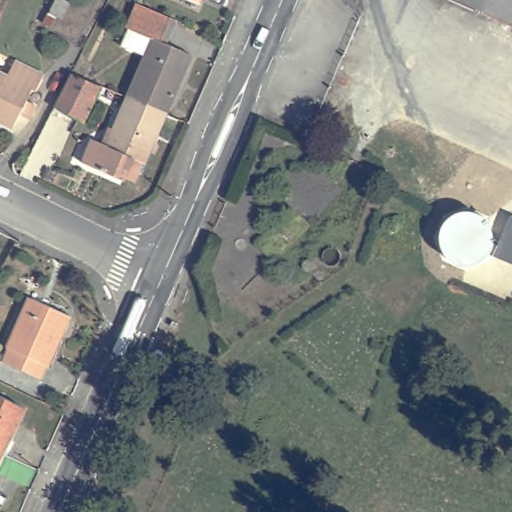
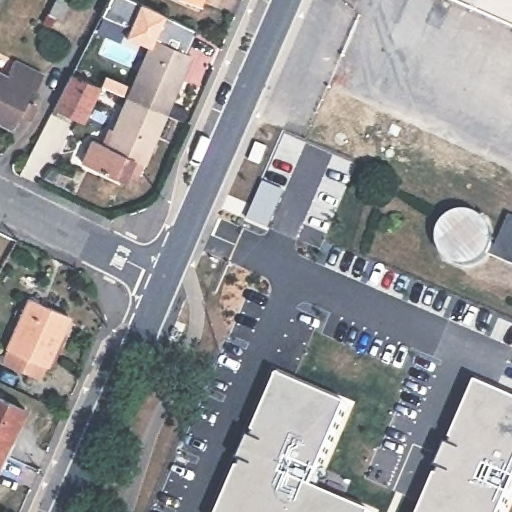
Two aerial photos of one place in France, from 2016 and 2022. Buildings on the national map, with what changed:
unchanged [(201,4),(192,0),(203,0),(201,4)]
unchanged [(450,0),(512,0),(512,27),(450,0)]
unchanged [(125,45),(132,29),(143,4),(179,21),(169,44),(194,55),(146,162),(144,162),(136,182),(127,179),(126,182),(85,164),(95,140),(110,146),(131,97),(149,56),(125,45)]
unchanged [(19,60),(47,75),(38,92),(35,90),(29,101),(39,107),(32,119),(22,114),(14,127),(0,120),(0,70),(11,75),(19,60)]
unchanged [(76,76),(105,91),(86,126),(58,111),(76,76)]
unchanged [(488,251),(492,244),(492,235),(497,239),(509,214),(512,215),(512,263),(488,251)]
unchanged [(37,301),(75,320),(45,382),(6,363),(37,301)]
new [(420,512),(437,472),(427,469),(451,411),(463,416),(471,400),(462,396),(474,371),(490,378),(487,387),(512,398),(512,492),(503,512),(420,512)]
new [(347,405),(311,487),(371,512),(220,512),(278,375),(347,405)]
unchanged [(7,455),(0,452),(0,399),(27,411),(7,455)]
unchanged [(0,470),(0,452),(7,455),(0,470)]

